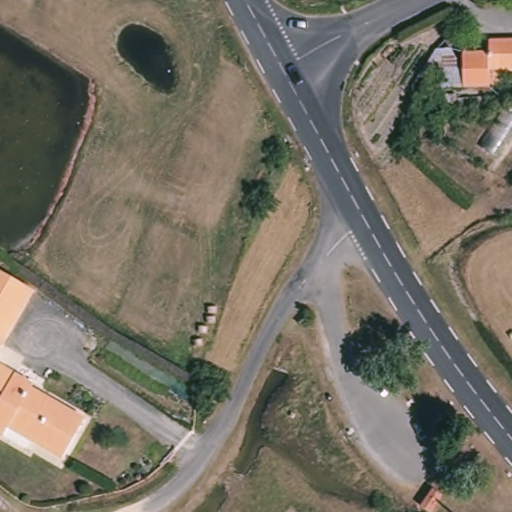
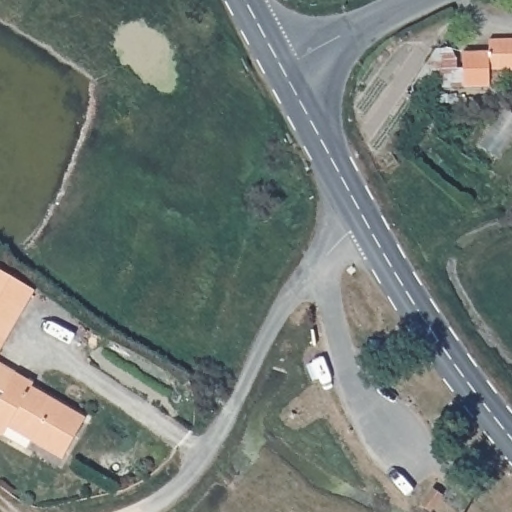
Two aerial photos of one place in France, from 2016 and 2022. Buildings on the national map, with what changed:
unchanged [(496,76),(497,85),(462,89),(458,56),(483,55),(483,43),(512,40),(512,74),(496,76)]
unchanged [(0,357),(0,266),(39,290),(0,357)]
unchanged [(0,364),(37,386),(35,391),(89,423),(67,461),(11,428),(6,436),(0,433),(0,407),(7,393),(0,389),(0,364)]

